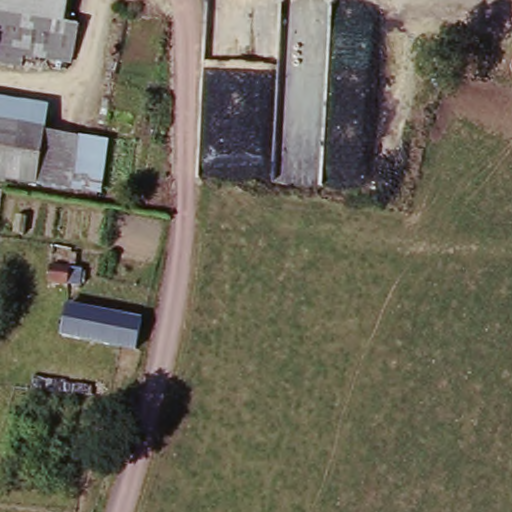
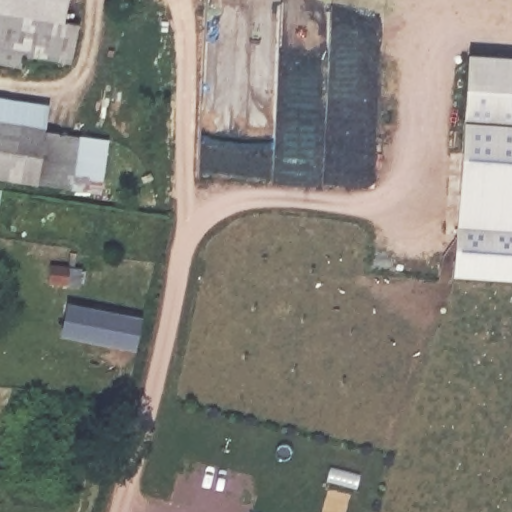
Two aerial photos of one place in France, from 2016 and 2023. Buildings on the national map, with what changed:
unchanged [(0,0),(63,0),(60,26),(73,28),(68,66),(17,60),(15,75),(0,73),(0,0)]
new [(469,60),(512,63),(512,130),(465,127),(469,60)]
unchanged [(45,138),(0,131),(0,101),(50,108),(45,138)]
new [(465,127),(512,130),(512,281),(455,277),(465,127)]
unchanged [(0,131),(71,142),(62,195),(0,185),(0,131)]
unchanged [(101,146),(92,199),(62,195),(71,142),(101,146)]
unchanged [(76,268),(75,285),(49,282),(50,266),(76,268)]
unchanged [(142,323),(136,353),(63,340),(67,310),(142,323)]

